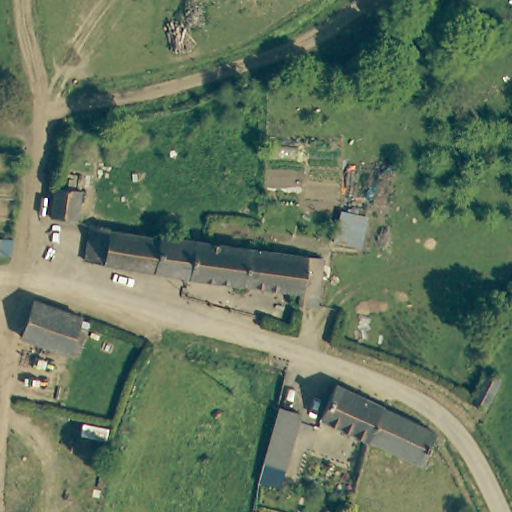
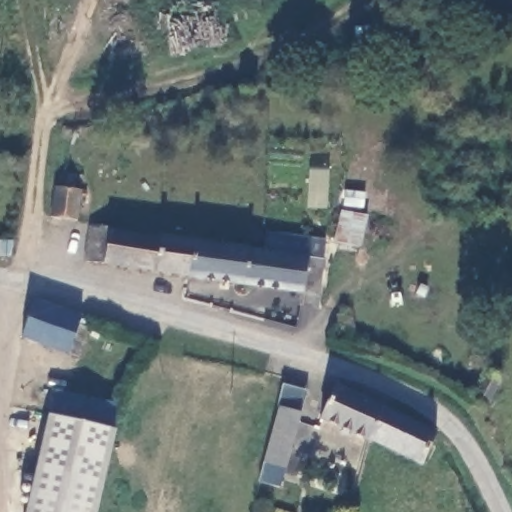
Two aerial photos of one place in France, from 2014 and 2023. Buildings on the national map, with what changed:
unchanged [(44,185),(47,168),(63,169),(61,188),(66,188),(63,215),(35,209),(39,184),(44,185)]
unchanged [(365,211),(357,242),(330,235),(337,205),(365,211)]
unchanged [(85,263),(90,222),(90,220),(114,223),(119,228),(161,235),(161,232),(185,235),(192,236),(185,277),(85,263)]
unchanged [(0,251),(0,236),(4,237),(0,251)]
unchanged [(192,236),(330,257),(321,308),(300,308),(303,298),(269,291),(227,283),(185,277),(192,236)]
unchanged [(69,353),(25,337),(35,301),(83,317),(69,353)]
unchanged [(473,405),(462,402),(470,383),(477,366),(496,373),(490,389),(483,407),(473,405)]
unchanged [(322,422),(324,417),(333,396),(333,391),(337,387),(383,407),(372,438),(371,441),(322,422)]
new [(116,433),(98,512),(26,512),(50,417),(56,391),(120,406),(116,433)]
unchanged [(430,428),(436,434),(425,462),(372,438),(383,407),(430,428)]
unchanged [(264,483),(268,463),(263,462),(275,411),(296,417),(284,467),(282,487),(264,483)]

